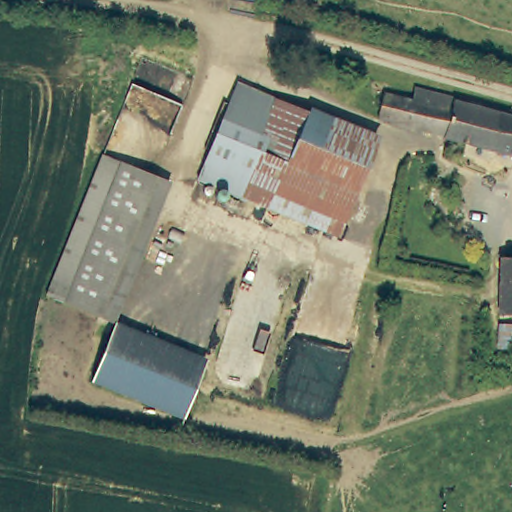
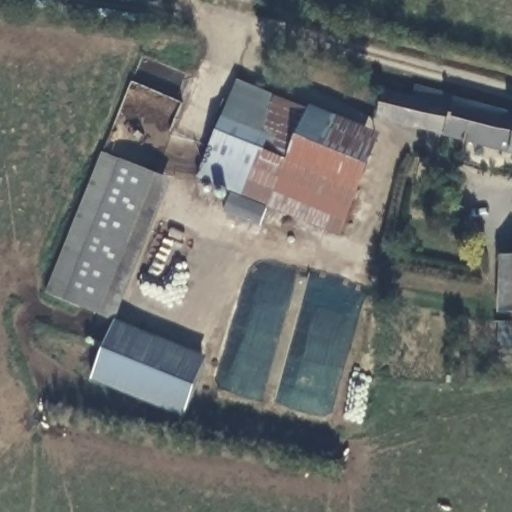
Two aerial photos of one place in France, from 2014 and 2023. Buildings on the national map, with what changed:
unchanged [(338,233),(199,174),(242,77),(380,136),(338,233)]
unchanged [(448,132),(379,114),(388,89),(411,96),(415,84),(458,94),(456,99),(510,110),(512,111),(512,151),(447,137),(448,132)]
unchanged [(104,155),(157,176),(104,316),(70,304),(75,292),(51,284),(104,155)]
unchanged [(512,314),(502,313),(505,262),(512,263),(512,314)]
unchanged [(204,363),(182,412),(91,374),(111,324),(204,363)]

